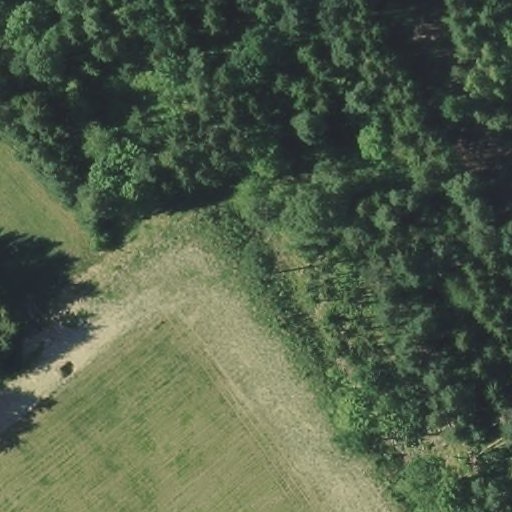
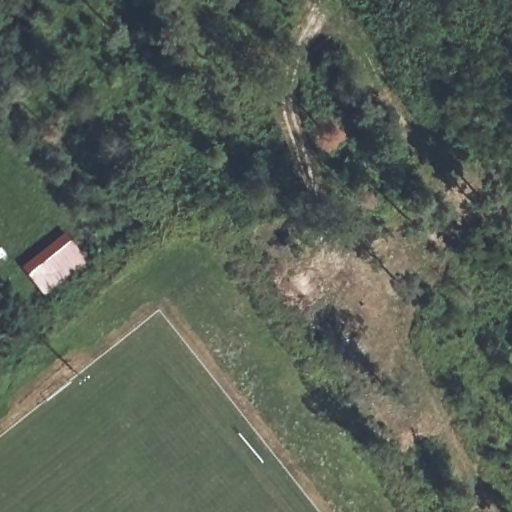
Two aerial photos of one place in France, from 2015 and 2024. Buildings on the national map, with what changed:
new [(65,233),(89,261),(45,297),(22,266),(65,233)]

